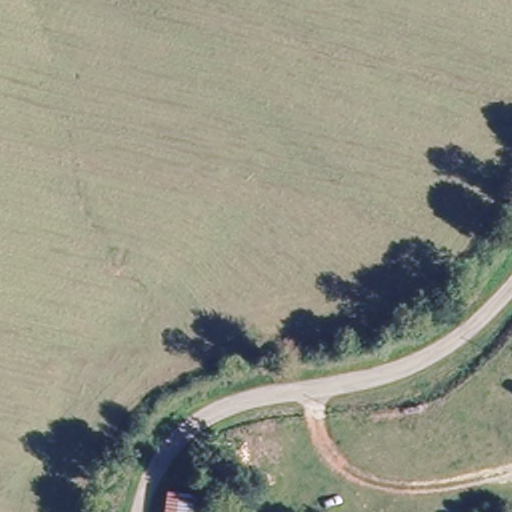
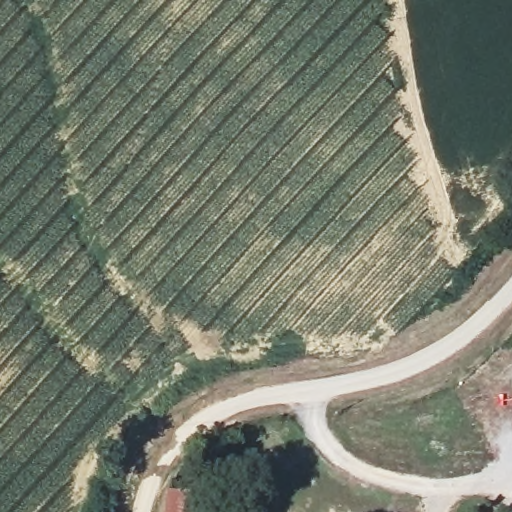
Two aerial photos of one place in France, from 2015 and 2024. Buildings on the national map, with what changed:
unchanged [(207,501),(206,512),(164,512),(167,497),(207,501)]

